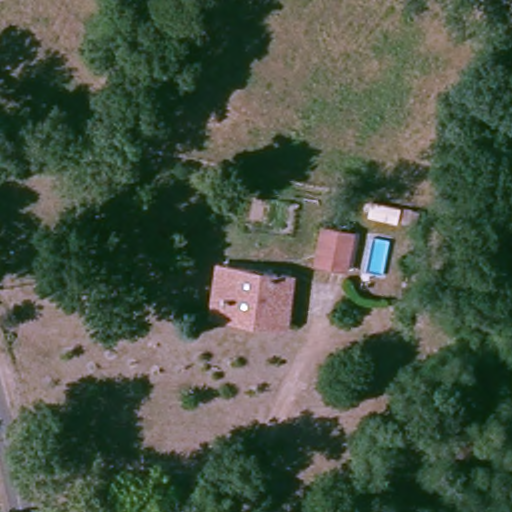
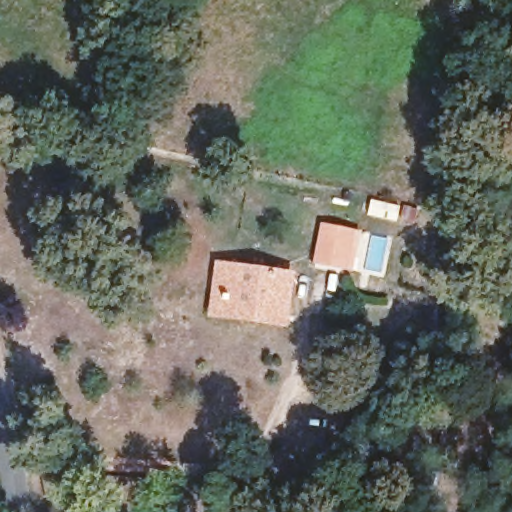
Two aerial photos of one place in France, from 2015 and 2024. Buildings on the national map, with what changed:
unchanged [(347,272),(313,263),(321,221),(356,229),(347,272)]
unchanged [(278,318),(220,307),(227,266),(286,275),(278,318)]

